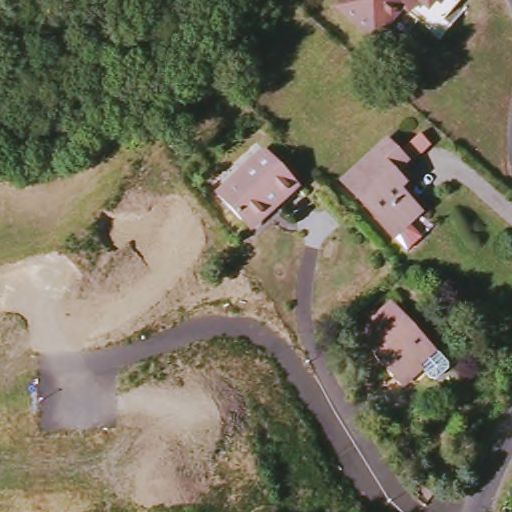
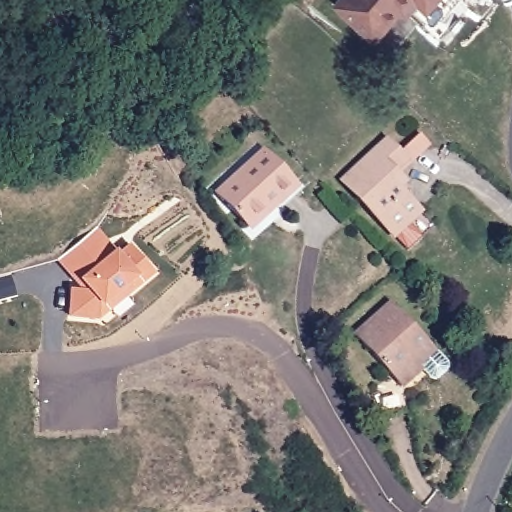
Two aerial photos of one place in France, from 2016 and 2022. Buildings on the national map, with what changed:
unchanged [(367,39),(329,8),(335,0),(454,0),(450,4),(456,9),(430,40),(394,7),(367,39)]
unchanged [(402,252),(389,237),(339,182),(382,142),(394,156),(417,137),(425,148),(402,167),(400,166),(393,172),(404,184),(397,190),(418,212),(405,223),(419,238),(402,252)]
unchanged [(217,197),(267,151),(299,189),(280,205),(277,199),(245,229),(217,197)]
new [(95,321),(67,318),(69,287),(80,288),(57,261),(97,227),(115,247),(117,252),(129,242),(155,274),(95,321)]
unchanged [(355,337),(387,307),(432,354),(417,369),(422,375),(404,391),(355,337)]

